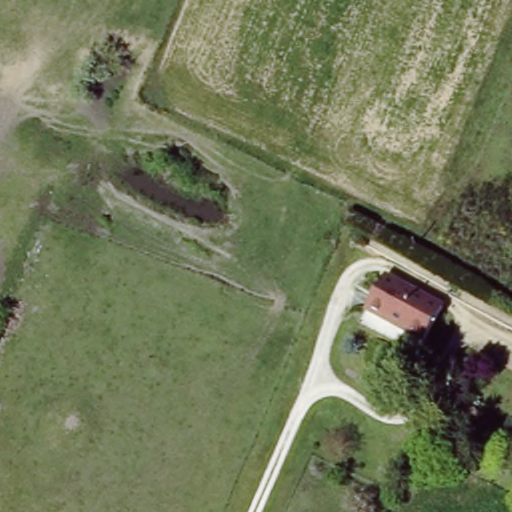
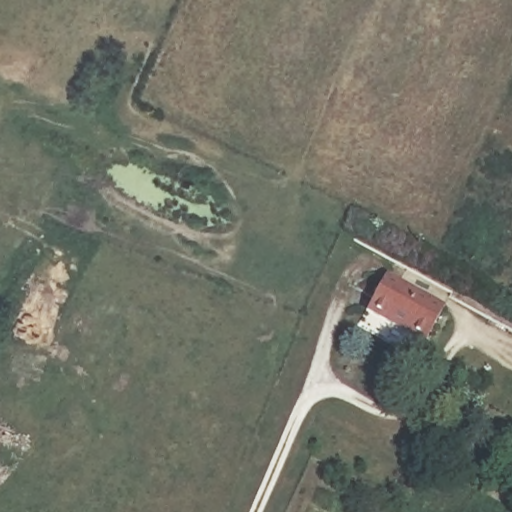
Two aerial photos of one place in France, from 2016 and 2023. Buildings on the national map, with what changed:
unchanged [(439,303),(421,337),(363,306),(381,272),(439,303)]

